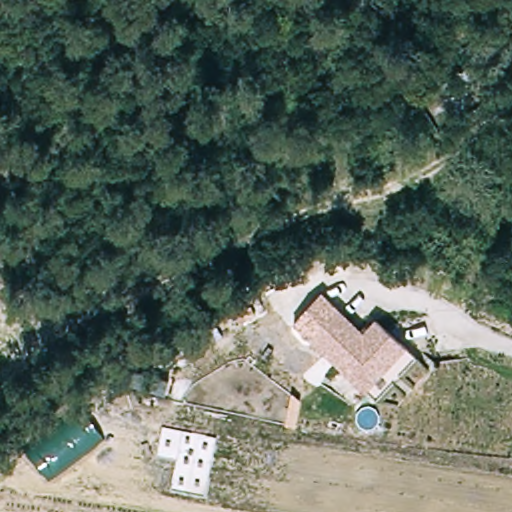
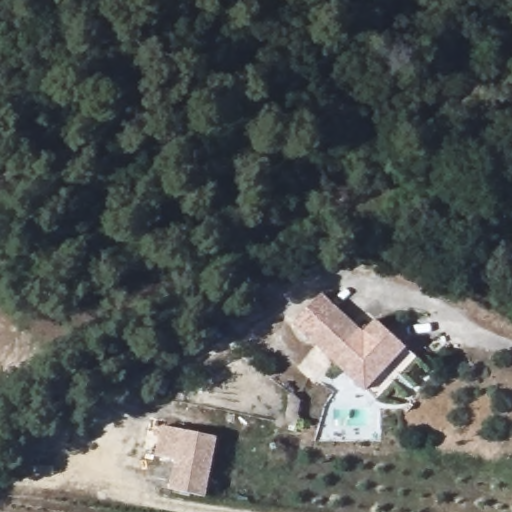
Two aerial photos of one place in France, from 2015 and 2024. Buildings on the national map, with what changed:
unchanged [(415,359),(379,390),(371,398),(309,329),(339,302),(362,329),(376,317),(395,337),(415,359)]
new [(207,497),(169,490),(175,460),(156,456),(161,426),(218,437),(207,497)]

